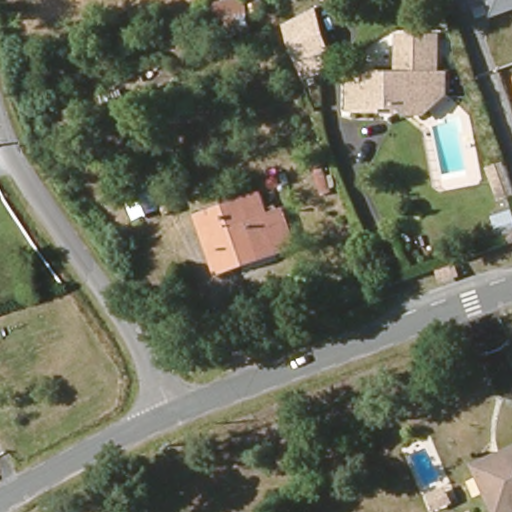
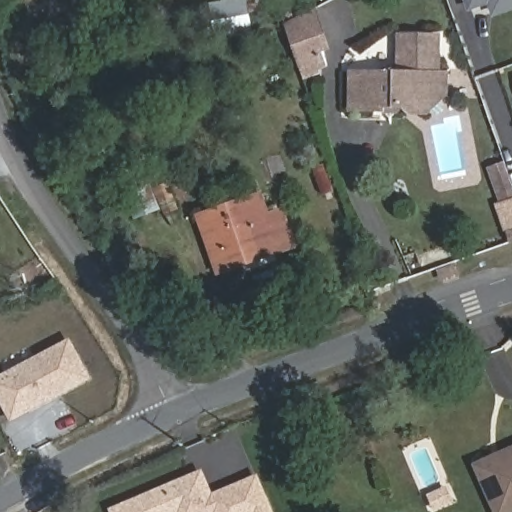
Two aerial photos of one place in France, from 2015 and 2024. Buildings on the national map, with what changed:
unchanged [(489,5),(469,12),(465,0),(512,0),(512,12),(494,18),(489,5)]
unchanged [(333,47),(318,55),(324,68),(302,79),(280,27),(319,8),(333,47)]
unchanged [(348,107),(348,70),(396,71),(397,33),(435,34),(435,69),(446,69),(446,92),(438,100),(434,100),(423,111),(407,110),(401,104),(388,116),(379,107),(348,107)]
unchanged [(512,199),(512,201),(498,205),(488,175),(501,170),(512,199)]
new [(151,185),(160,210),(136,218),(128,194),(151,185)]
unchanged [(259,196),(264,211),(280,207),(292,244),(218,270),(200,213),(259,196)]
unchanged [(512,231),(512,234),(511,231),(512,231)]
new [(72,341),(90,377),(63,391),(61,386),(49,392),(52,397),(13,416),(0,391),(0,377),(72,341)]
unchanged [(512,509),(505,512),(496,512),(475,465),(500,454),(512,449),(512,509)]
new [(202,469),(212,491),(258,473),(274,512),(110,512),(108,509),(202,469)]

